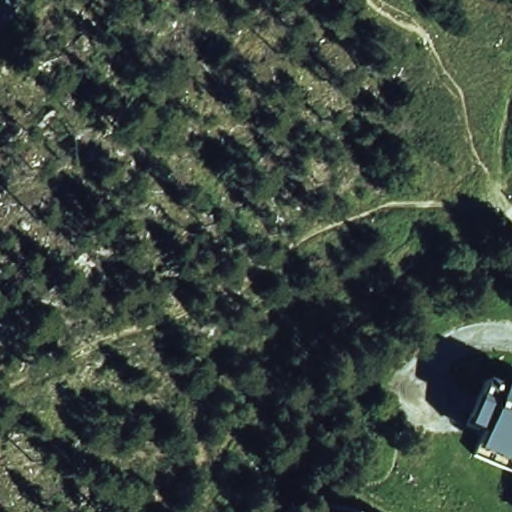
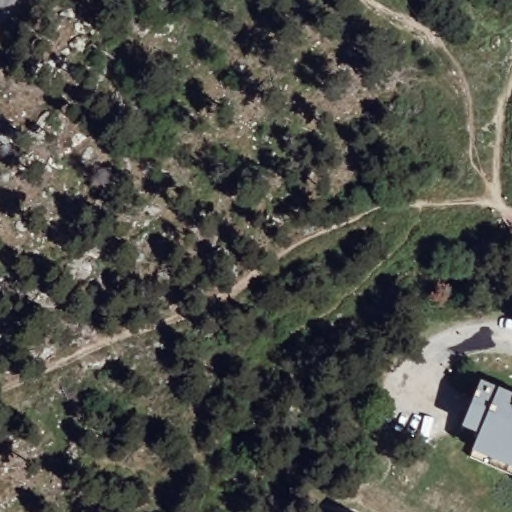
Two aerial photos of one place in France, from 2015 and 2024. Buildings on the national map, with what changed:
unchanged [(479,436),(459,426),(487,382),(512,392),(512,469),(473,452),(479,436)]

